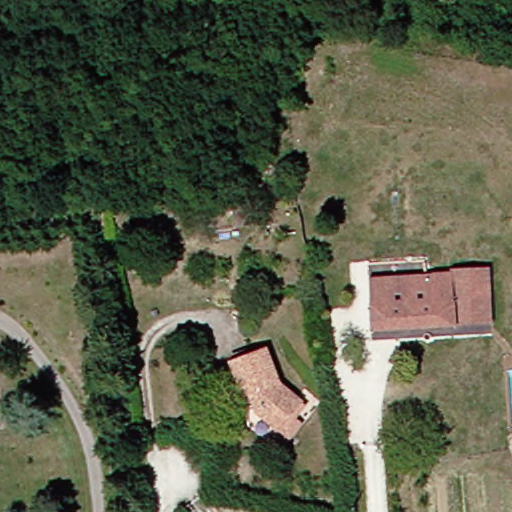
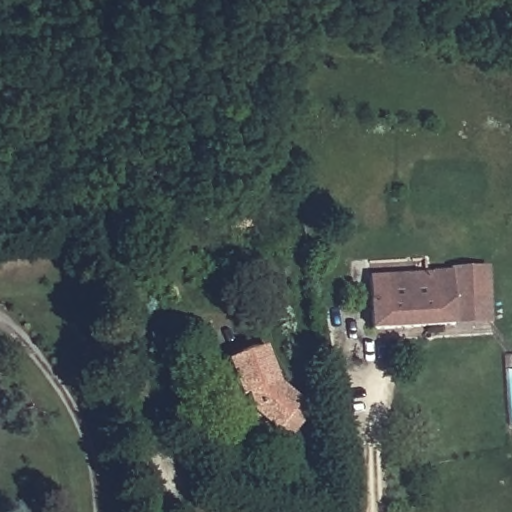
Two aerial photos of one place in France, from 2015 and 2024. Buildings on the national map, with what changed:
unchanged [(239,231),(237,207),(255,206),(256,229),(239,231)]
unchanged [(456,269),(459,325),(387,330),(373,330),(372,262),(455,258),(456,269)]
unchanged [(456,269),(495,267),(496,324),(459,325),(456,269)]
unchanged [(285,386),(307,406),(281,437),(259,419),(258,417),(262,412),(257,397),(251,400),(245,402),(231,366),(271,351),(285,386)]

